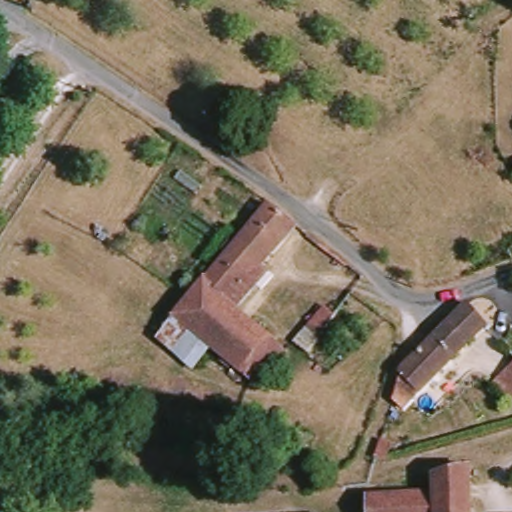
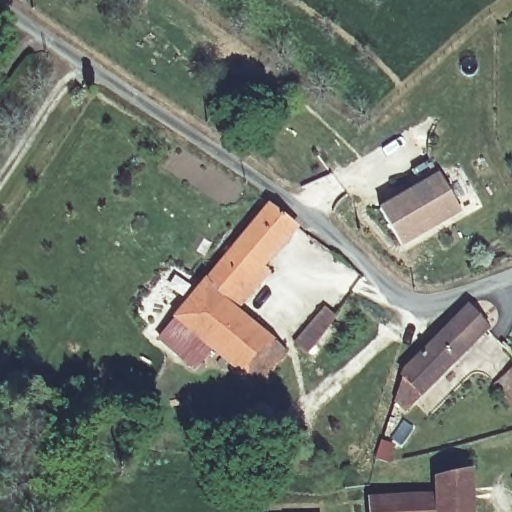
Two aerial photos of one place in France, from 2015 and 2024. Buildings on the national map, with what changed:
new [(418,184),(412,171),(430,162),(438,174),(460,214),(401,247),(379,208),(418,184)]
unchanged [(263,271),(270,277),(258,290),(236,316),(283,357),(268,381),(261,377),(254,386),(207,352),(192,370),(161,343),(177,325),(173,322),(221,265),(209,257),(229,234),(240,243),(268,208),(296,231),(263,271)]
unchanged [(324,308),(333,316),(306,348),(296,341),(324,308)]
unchanged [(468,311),(489,331),(403,416),(394,407),(401,379),(468,311)]
unchanged [(494,383),(512,367),(512,403),(494,383)]
unchanged [(278,429),(310,436),(301,470),(270,463),(278,429)]
unchanged [(468,512),(436,512),(436,501),(434,482),(466,474),(468,512)]
unchanged [(436,501),(436,512),(404,512),(403,502),(436,501)]
unchanged [(403,502),(404,512),(370,512),(370,504),(403,502)]

